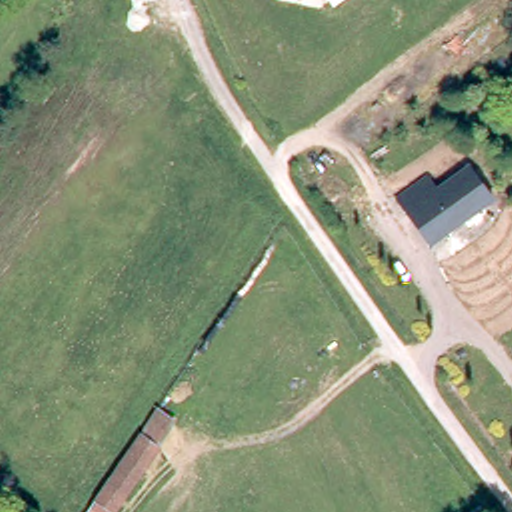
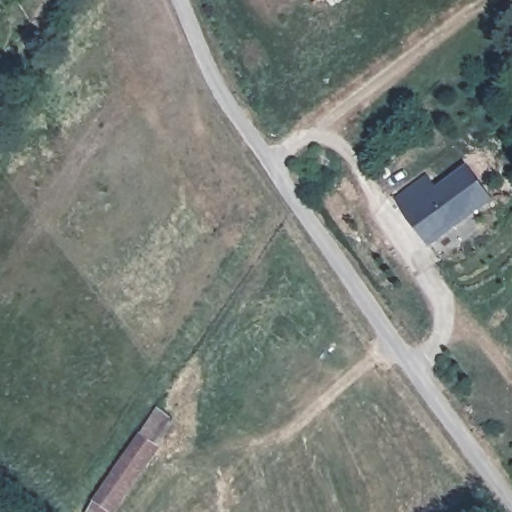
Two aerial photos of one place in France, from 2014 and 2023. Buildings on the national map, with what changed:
unchanged [(493,201),(430,245),(397,196),(427,174),(435,186),(468,163),(493,201)]
unchanged [(120,507),(102,495),(147,429),(165,440),(120,507)]

